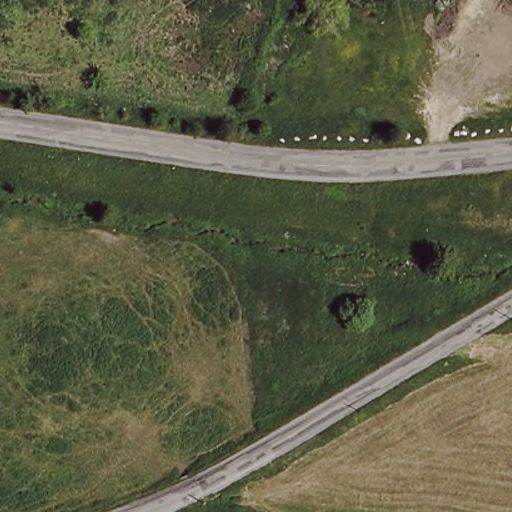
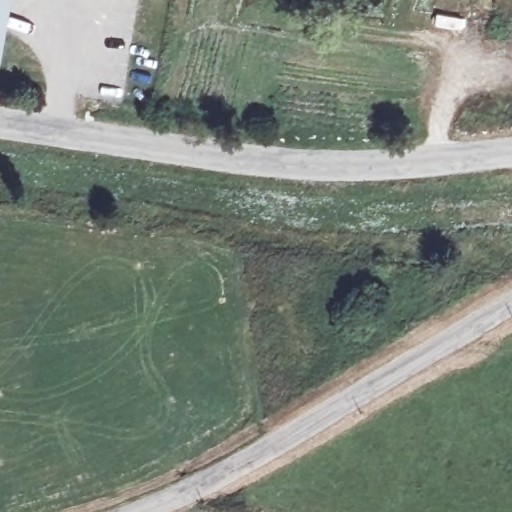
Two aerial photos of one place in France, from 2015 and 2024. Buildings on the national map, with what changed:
new [(0,58),(0,0),(9,0),(0,58)]

